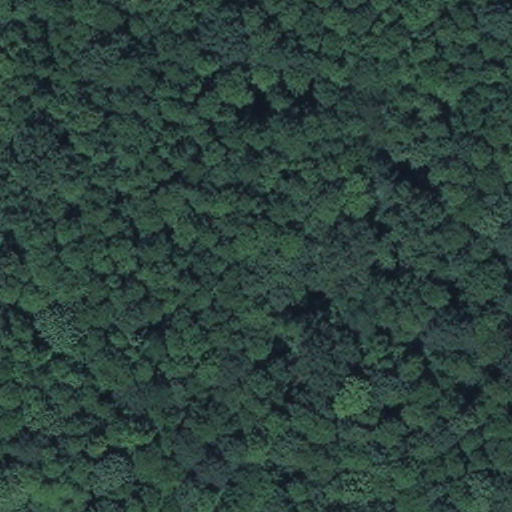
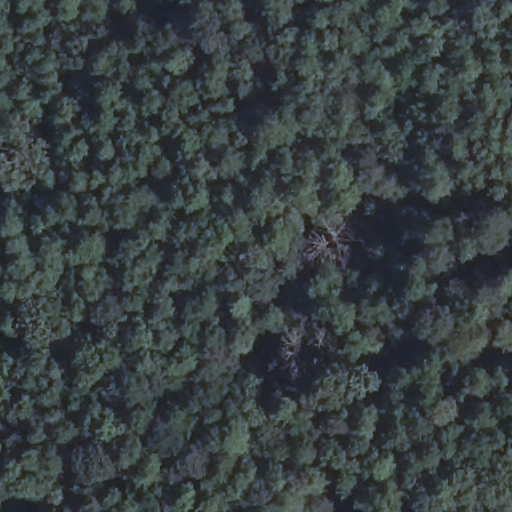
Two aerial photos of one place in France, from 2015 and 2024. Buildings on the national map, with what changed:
[]

